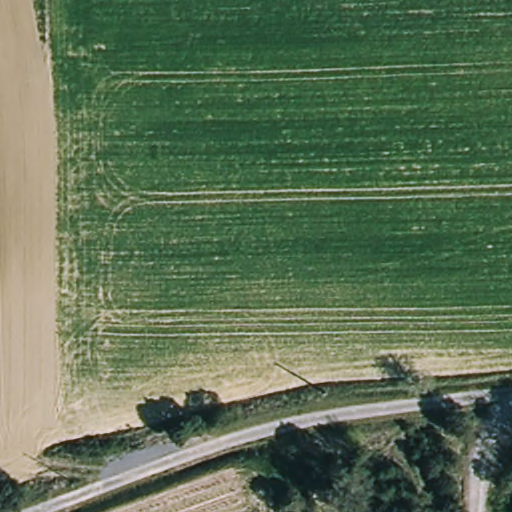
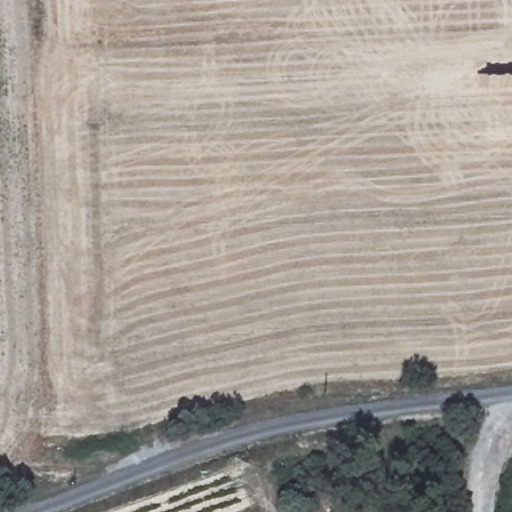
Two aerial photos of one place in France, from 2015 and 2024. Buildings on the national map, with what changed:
[]

